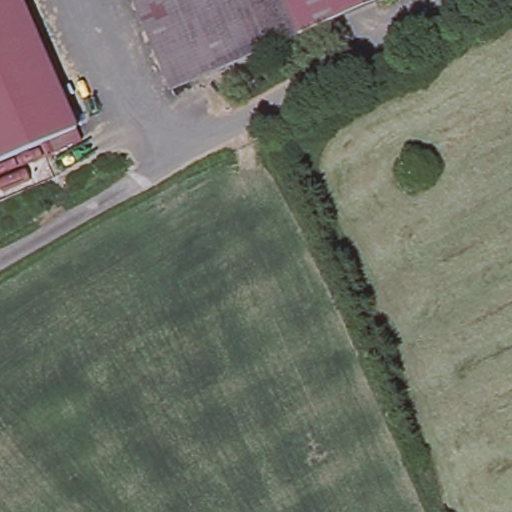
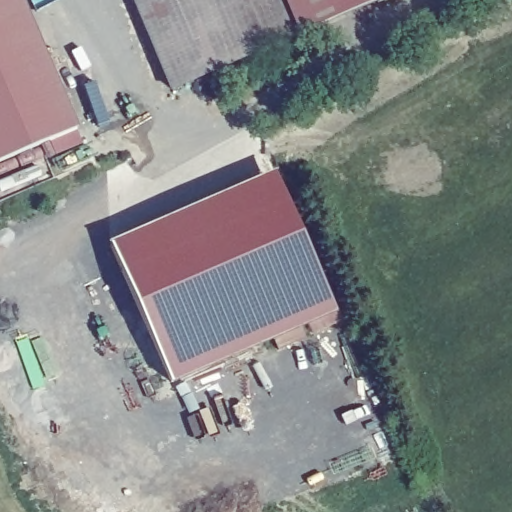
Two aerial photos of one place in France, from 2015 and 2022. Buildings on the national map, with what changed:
unchanged [(0,164),(0,0),(22,0),(77,130),(0,164)]
unchanged [(136,0),(213,0),(237,56),(172,83),(136,0)]
unchanged [(237,56),(213,0),(283,0),(297,31),(237,56)]
unchanged [(370,0),(297,31),(283,0),(370,0)]
new [(278,168),(338,311),(172,384),(112,241),(278,168)]

